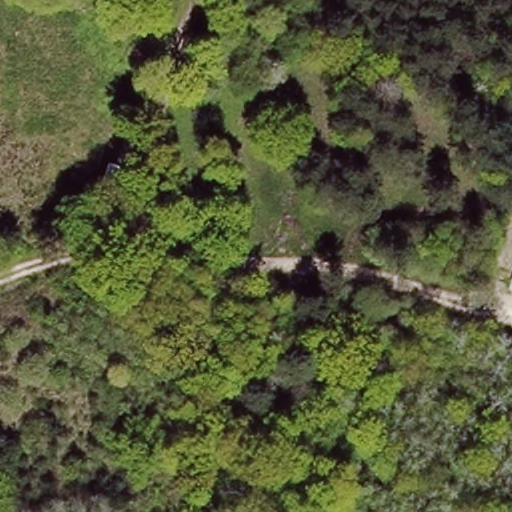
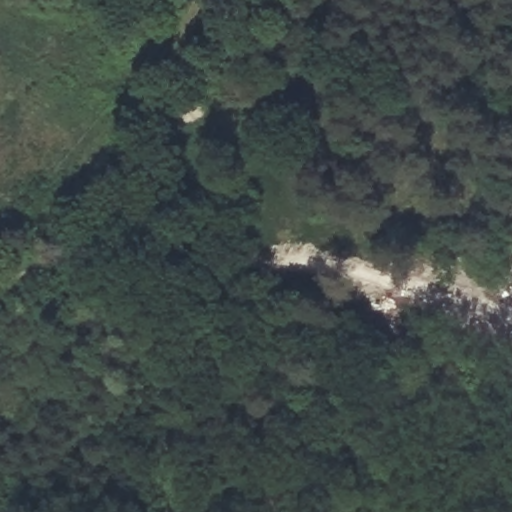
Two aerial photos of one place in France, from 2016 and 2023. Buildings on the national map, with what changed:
unchanged [(512,289),(512,293),(510,292),(512,289)]

